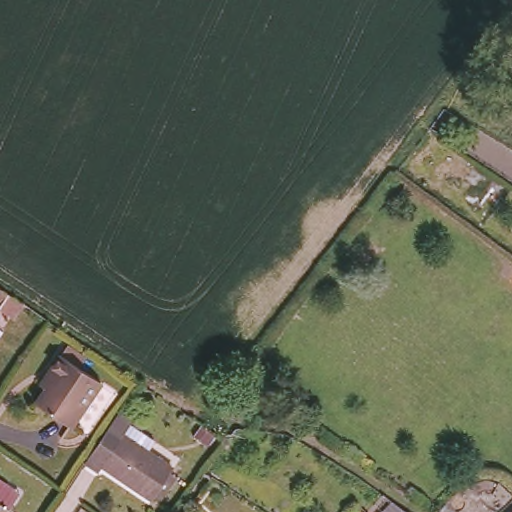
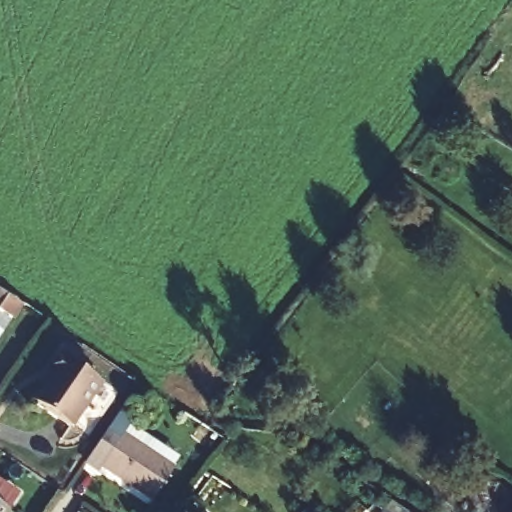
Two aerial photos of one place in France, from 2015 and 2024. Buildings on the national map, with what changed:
unchanged [(40,385),(47,375),(43,372),(55,354),(93,381),(62,427),(28,403),(40,385)]
unchanged [(128,436),(177,471),(156,503),(106,467),(102,472),(88,462),(120,415),(121,414),(137,425),(128,436)]
unchanged [(408,512),(363,512),(381,495),(408,512)]
unchanged [(512,512),(505,512),(512,506),(512,512)]
unchanged [(2,509),(0,511),(0,507),(2,509)]

